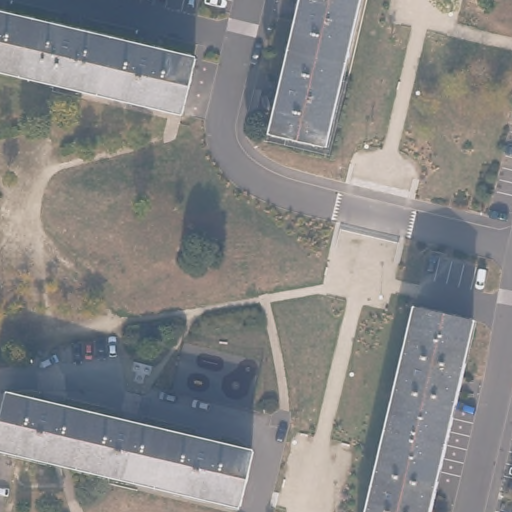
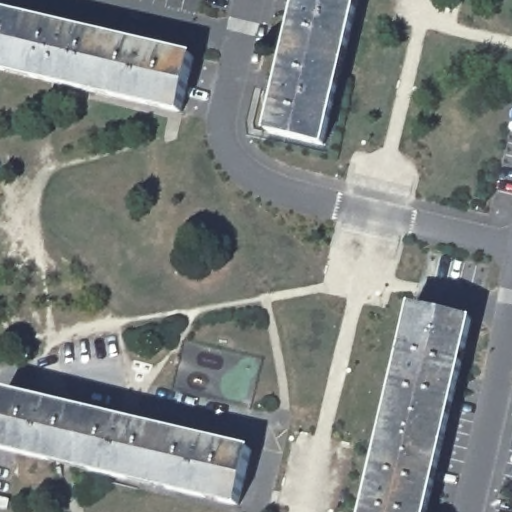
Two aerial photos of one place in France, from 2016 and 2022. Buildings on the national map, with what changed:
unchanged [(324,147),(269,135),(300,0),(359,0),(324,147)]
unchanged [(182,115),(0,72),(0,15),(194,60),(182,115)]
unchanged [(427,512),(366,512),(414,310),(471,322),(427,512)]
unchanged [(254,453),(240,507),(0,451),(0,412),(4,395),(254,453)]

